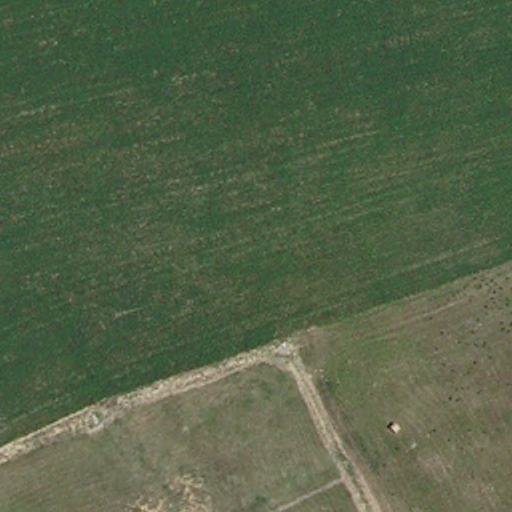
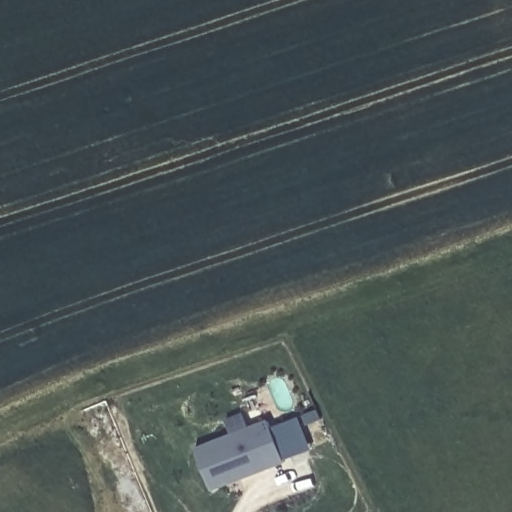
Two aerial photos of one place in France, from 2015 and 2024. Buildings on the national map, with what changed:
new [(268,419),(283,459),(210,488),(195,448),(268,419)]

